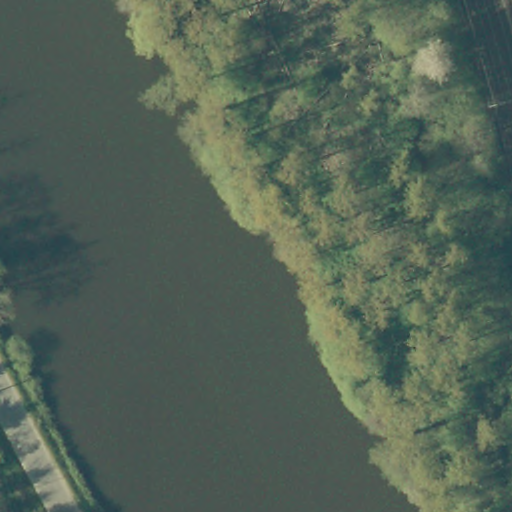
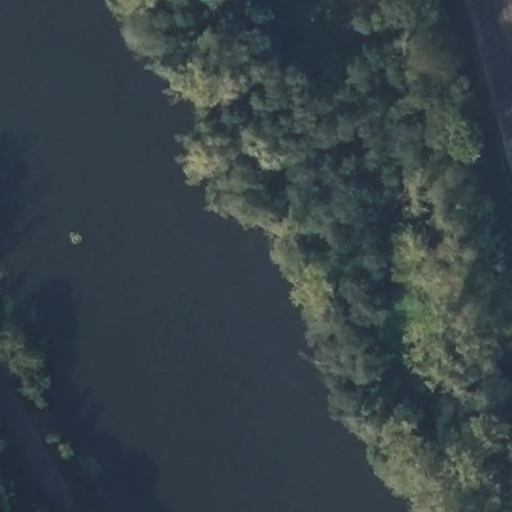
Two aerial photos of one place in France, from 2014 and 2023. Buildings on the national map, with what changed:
[]

